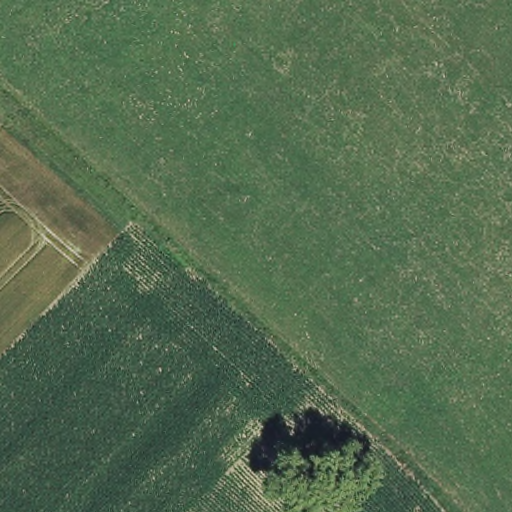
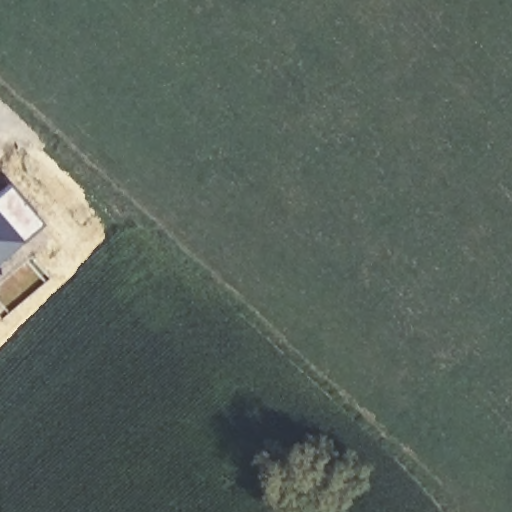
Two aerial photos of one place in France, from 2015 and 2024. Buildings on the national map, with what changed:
new [(5,184),(41,225),(19,244),(0,220),(0,188),(5,184)]
new [(19,244),(0,259),(0,220),(19,244)]

